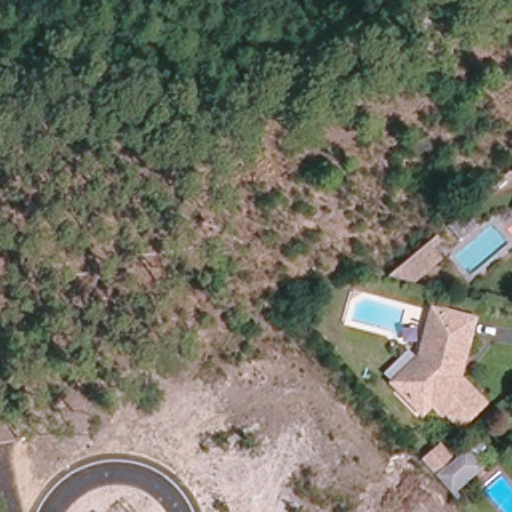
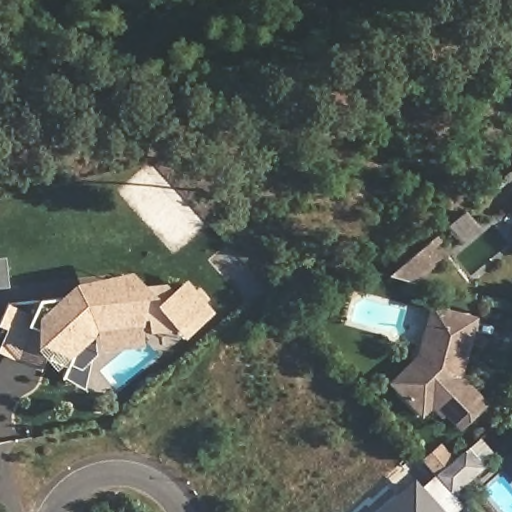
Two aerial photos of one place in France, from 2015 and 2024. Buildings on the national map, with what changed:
unchanged [(434,237),(424,245),(432,254),(403,278),(382,272),(430,232),(434,237)]
new [(6,287),(0,288),(0,259),(4,259),(6,287)]
new [(34,301),(36,298),(57,297),(73,283),(129,270),(140,285),(165,284),(171,291),(185,279),(194,290),(198,287),(208,299),(204,302),(212,312),(182,339),(174,330),(146,332),(145,319),(140,321),(139,325),(137,326),(139,345),(96,350),(94,333),(91,335),(96,355),(90,360),(84,390),(61,377),(66,367),(59,365),(52,370),(43,360),(38,371),(0,354),(0,339),(4,329),(0,327),(0,313),(4,302),(34,301)]
unchanged [(419,356),(424,353),(437,305),(478,315),(466,360),(463,373),(487,401),(462,424),(447,408),(444,411),(434,400),(424,410),(404,389),(394,378),(419,356)]
unchanged [(468,446),(482,460),(453,486),(438,469),(468,446)]
new [(443,512),(376,512),(413,479),(443,512)]

